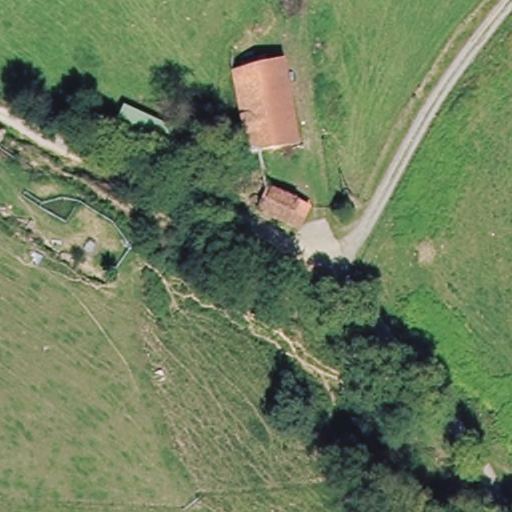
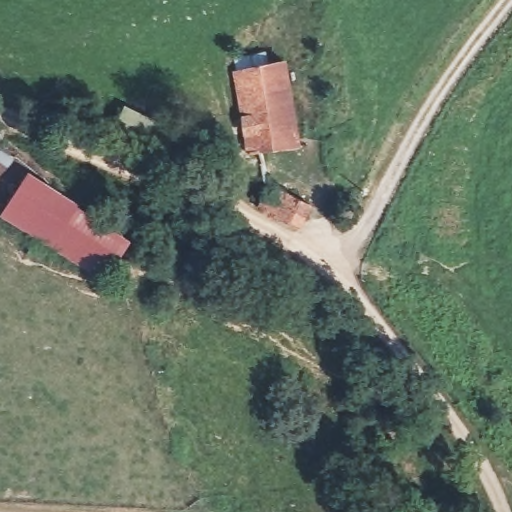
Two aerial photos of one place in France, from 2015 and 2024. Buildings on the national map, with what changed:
unchanged [(305,156),(254,165),(234,62),(286,53),(290,72),(305,156)]
unchanged [(178,126),(166,156),(114,134),(128,105),(178,126)]
new [(102,281),(0,216),(0,214),(29,169),(79,202),(78,204),(131,239),(102,281)]
unchanged [(268,184),(311,204),(302,224),(261,207),(268,184)]

